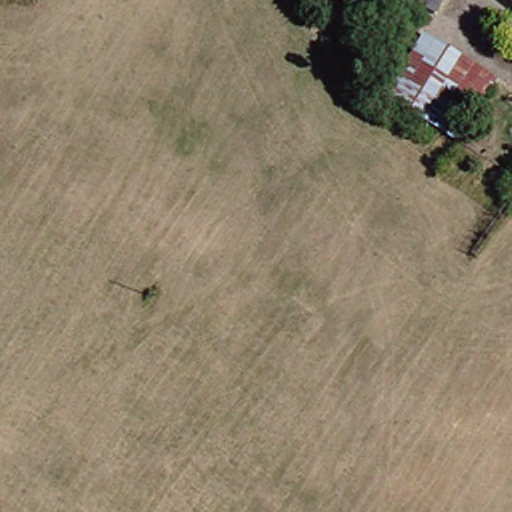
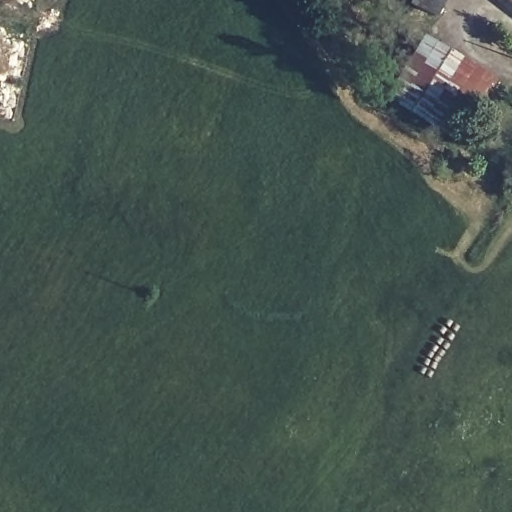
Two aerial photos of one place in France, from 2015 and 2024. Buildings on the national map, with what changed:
unchanged [(438,12),(415,0),(444,0),(438,12)]
unchanged [(469,139),(379,87),(414,26),(425,32),(507,81),(497,95),(469,139)]

